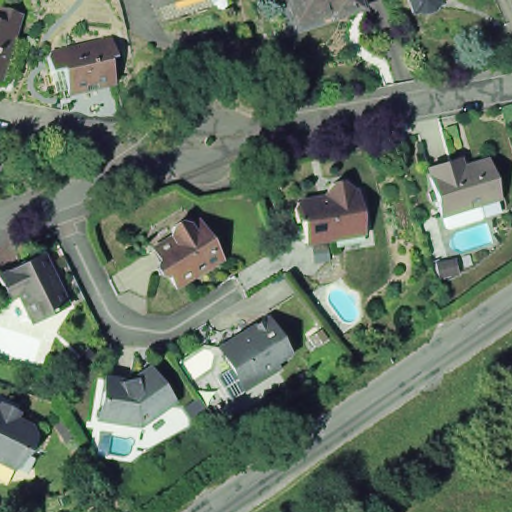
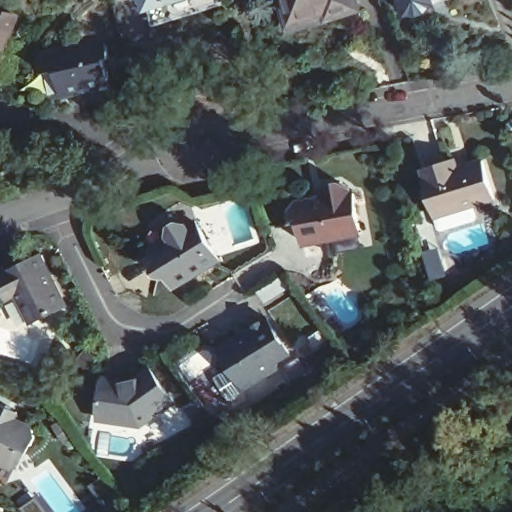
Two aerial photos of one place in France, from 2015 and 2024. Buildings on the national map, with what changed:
unchanged [(151,2),(151,0),(159,0),(224,0),(163,20),(156,1),(151,2)]
unchanged [(296,27),(287,0),(349,0),(356,0),(360,11),(354,14),(333,20),(331,15),(296,27)]
unchanged [(406,12),(402,0),(436,0),(436,1),(406,12)]
unchanged [(1,23),(5,11),(27,18),(8,80),(0,77),(0,23),(1,23)]
unchanged [(113,40),(118,59),(113,60),(118,81),(103,85),(103,90),(92,92),(90,87),(73,91),(69,71),(56,74),(53,59),(56,54),(113,40)]
unchanged [(500,196),(441,214),(429,175),(432,175),(429,166),(452,160),(461,157),(463,165),(489,158),(500,196)]
unchanged [(329,237),(302,243),(298,219),(291,222),(289,209),(294,201),(322,196),(321,191),(328,181),(339,179),(349,187),(349,190),(352,190),(359,224),(361,229),(329,237)]
unchanged [(169,262),(173,260),(161,242),(177,234),(175,230),(178,221),(186,217),(196,222),(203,218),(226,254),(181,282),(169,262)]
unchanged [(48,250),(73,300),(38,319),(23,292),(13,296),(2,271),(48,250)]
unchanged [(446,263),(449,277),(434,281),(431,266),(446,263)]
unchanged [(222,373),(237,364),(228,348),(258,329),(255,324),(272,313),(294,349),(279,358),(281,363),(249,384),(234,393),(222,373)]
unchanged [(135,380),(154,365),(177,398),(149,418),(143,418),(137,422),(102,417),(108,376),(135,380)]
unchanged [(0,472),(0,397),(29,411),(28,414),(46,422),(49,431),(45,440),(38,442),(28,463),(10,455),(3,468),(0,472)]

